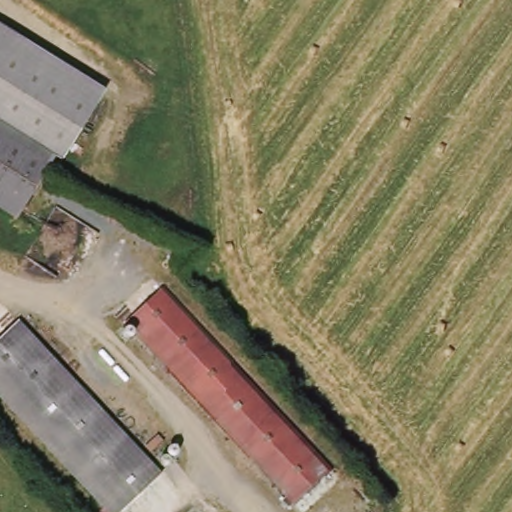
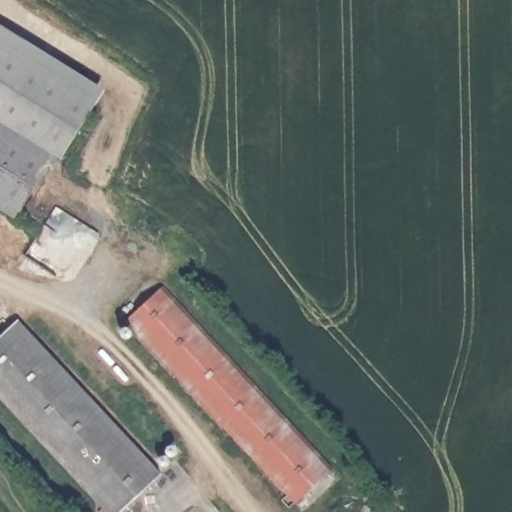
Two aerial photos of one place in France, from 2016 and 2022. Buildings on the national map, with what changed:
unchanged [(97,91),(54,160),(47,156),(0,127),(0,30),(97,91)]
unchanged [(47,156),(8,217),(0,212),(0,127),(47,156)]
unchanged [(331,469),(295,503),(125,321),(161,287),(331,469)]
unchanged [(18,321),(162,476),(123,512),(108,512),(0,396),(0,338),(18,321)]

